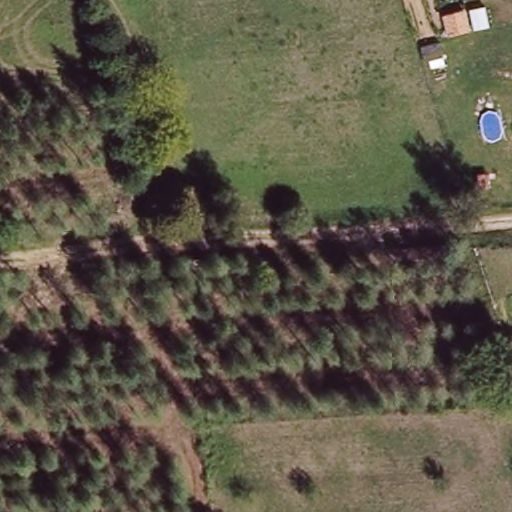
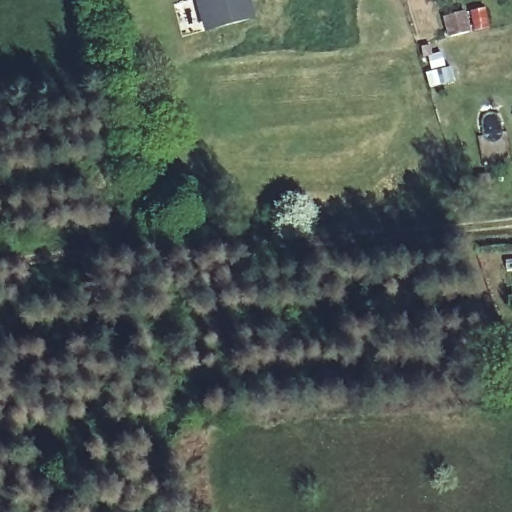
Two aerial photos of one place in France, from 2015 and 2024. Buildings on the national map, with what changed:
new [(257,17),(204,33),(195,0),(252,0),(257,17)]

